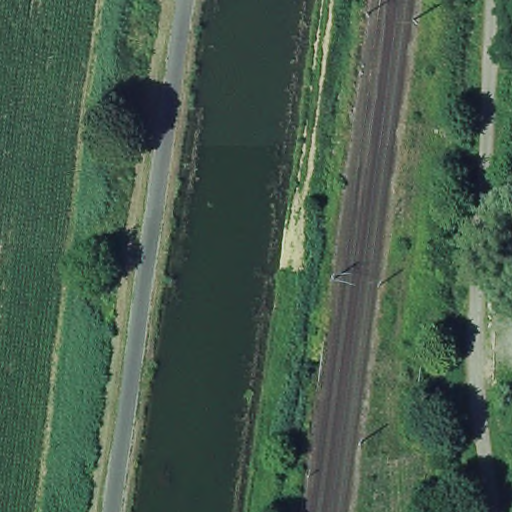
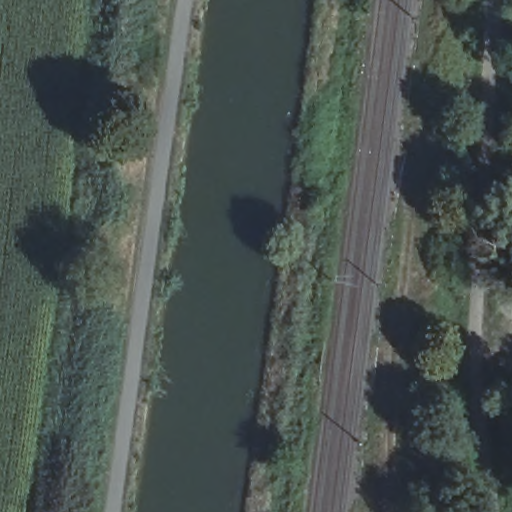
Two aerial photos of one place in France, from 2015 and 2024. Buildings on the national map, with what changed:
unchanged [(423,330),(427,301),(444,304),(440,332),(423,330)]

